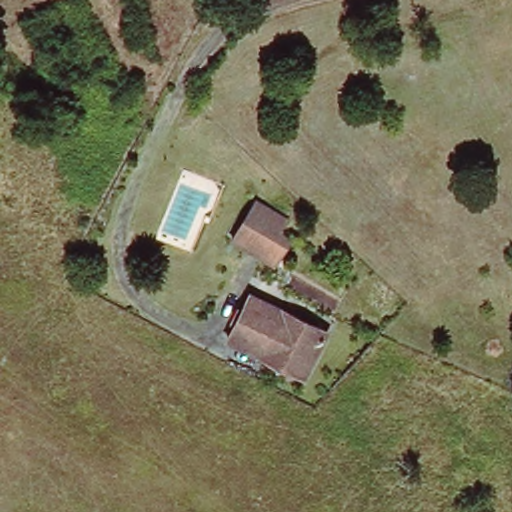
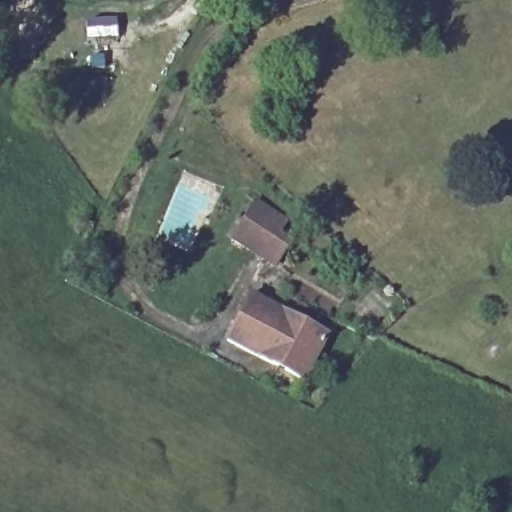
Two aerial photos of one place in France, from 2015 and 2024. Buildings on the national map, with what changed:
unchanged [(280,221),(275,234),(283,241),(270,264),(231,240),(255,202),(280,221)]
unchanged [(325,334),(302,379),(225,339),(247,296),(325,334)]

